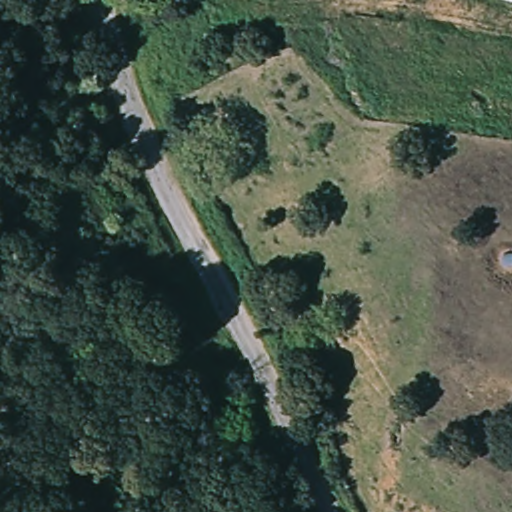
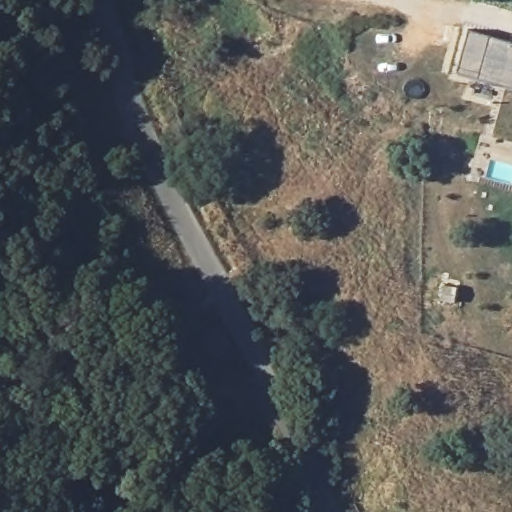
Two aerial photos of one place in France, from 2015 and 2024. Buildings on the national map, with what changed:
new [(469,31),(512,43),(512,86),(457,72),(469,31)]

